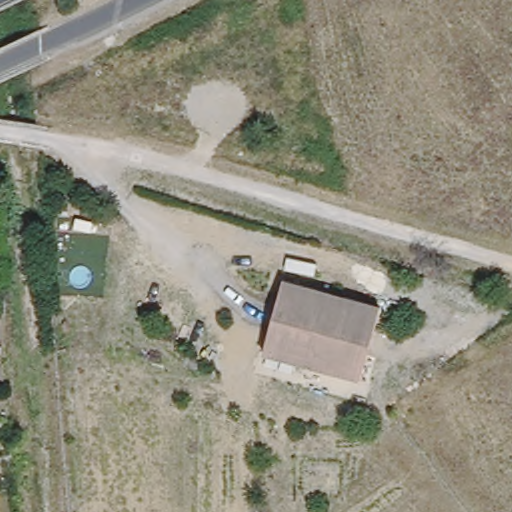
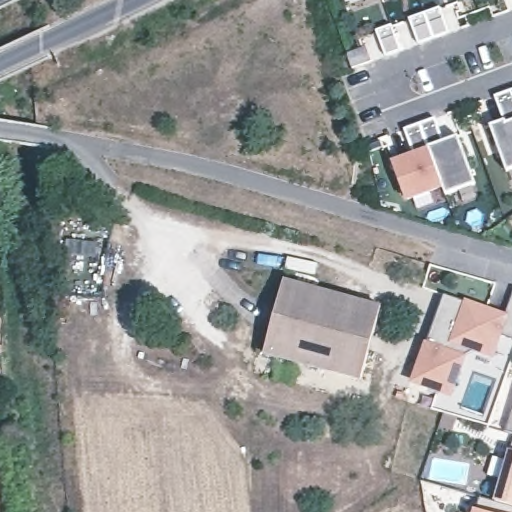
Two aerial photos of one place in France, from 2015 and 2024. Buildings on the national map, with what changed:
new [(347,0),(350,0),(347,1),(347,0)]
new [(440,8),(448,33),(433,38),(418,44),(410,19),(424,13),(440,8)]
new [(377,30),(391,25),(400,50),(385,55),(377,30)]
new [(503,121),(495,95),(510,90),(512,94),(512,170),(507,172),(490,126),(503,121)]
new [(435,118),(443,141),(457,135),(475,184),(445,195),(442,186),(419,123),(435,118)]
new [(413,155),(403,129),(419,123),(442,186),(407,200),(393,162),(413,155)]
unchanged [(362,381),(263,353),(285,278),(382,305),(362,381)]
new [(425,341),(427,342),(444,294),(466,300),(505,314),(512,294),(512,339),(500,334),(492,358),(471,350),(465,355),(452,395),(412,381),(425,341)]
new [(504,432),(512,403),(512,434),(504,432)]
new [(495,502),(512,442),(512,507),(495,502)]
new [(477,510),(480,498),(495,502),(512,507),(512,512),(473,512),(473,510),(477,510)]

